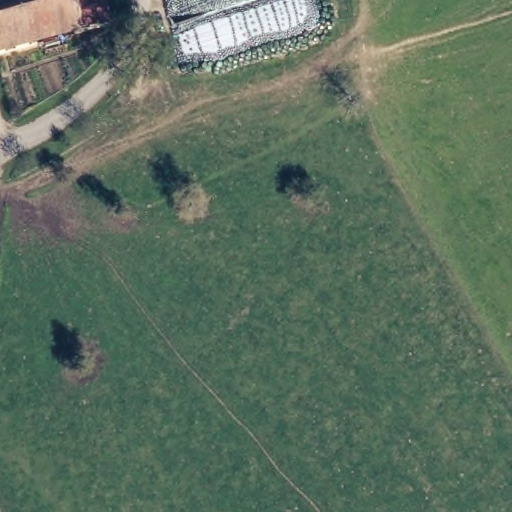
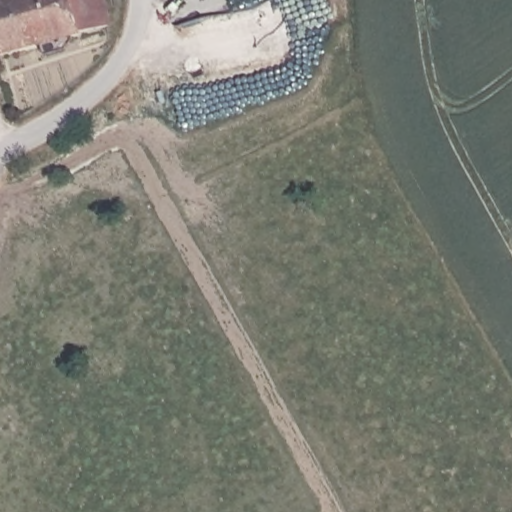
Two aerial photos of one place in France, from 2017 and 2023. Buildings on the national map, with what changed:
unchanged [(107,29),(0,56),(0,3),(10,0),(98,0),(107,29)]

